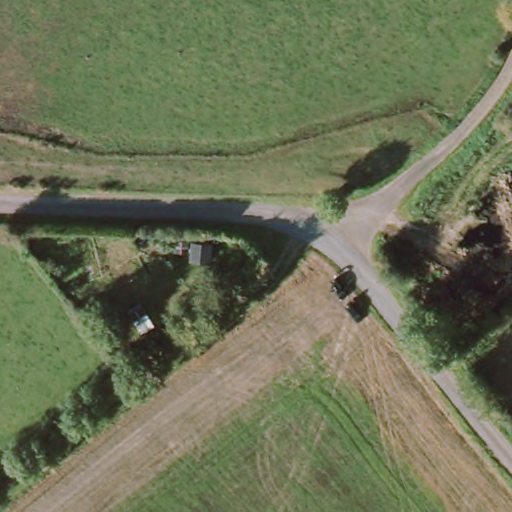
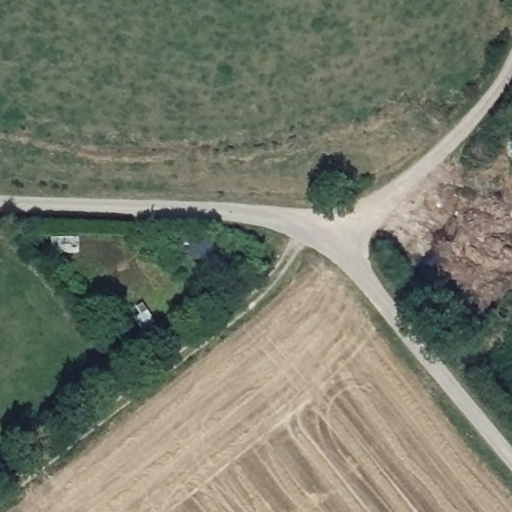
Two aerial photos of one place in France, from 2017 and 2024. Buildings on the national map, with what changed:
unchanged [(178,257),(181,244),(141,244),(141,228),(203,233),(203,259),(178,257)]

